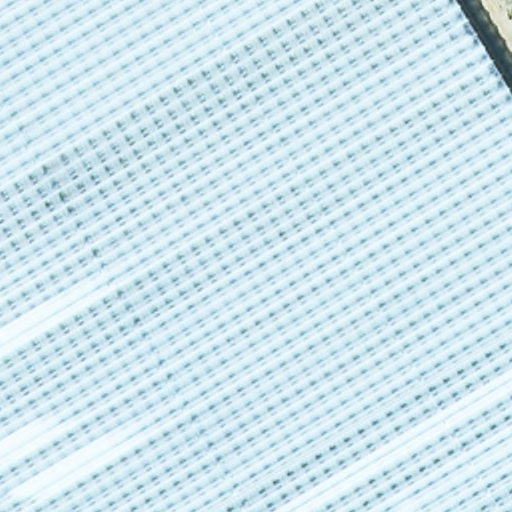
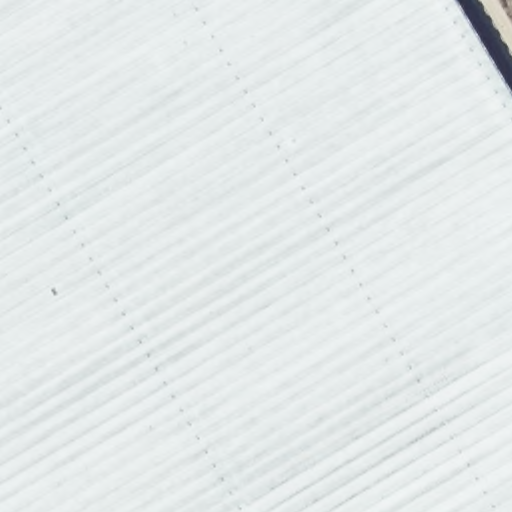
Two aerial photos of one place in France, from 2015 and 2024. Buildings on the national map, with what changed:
unchanged [(512,105),(512,512),(0,512),(0,0),(449,0),(512,105)]

